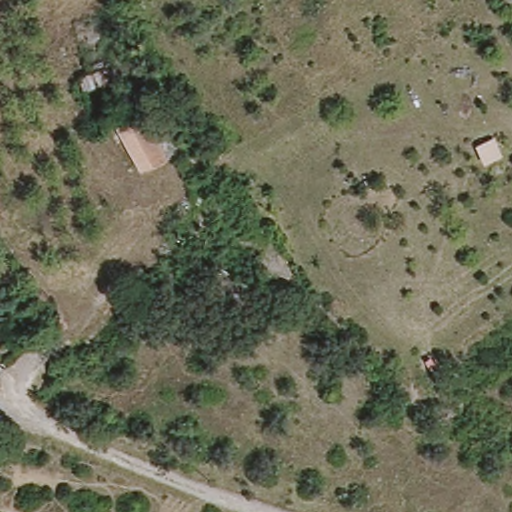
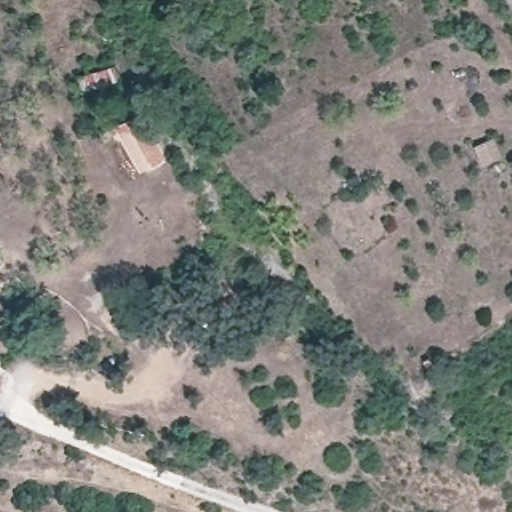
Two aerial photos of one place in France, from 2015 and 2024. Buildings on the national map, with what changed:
unchanged [(117,65),(122,80),(85,91),(80,77),(117,65)]
unchanged [(148,113),(172,160),(149,170),(125,124),(148,113)]
unchanged [(256,291),(245,305),(230,293),(225,300),(207,288),(222,265),(256,291)]
unchanged [(59,320),(50,327),(42,318),(51,310),(59,320)]

